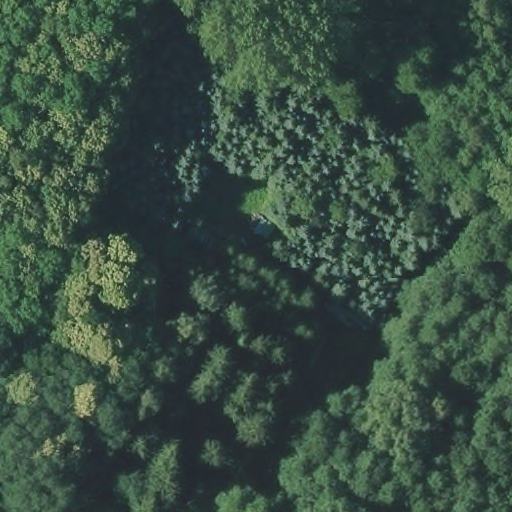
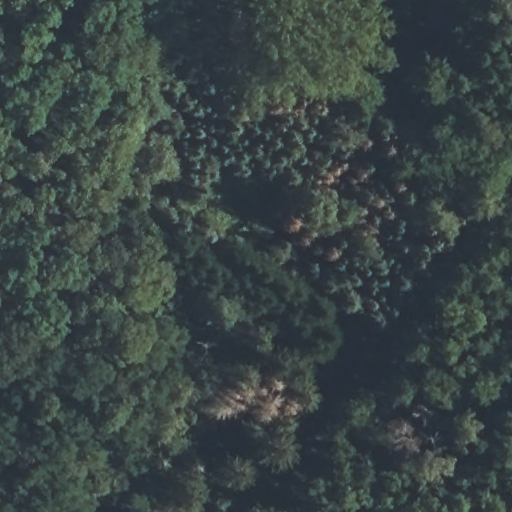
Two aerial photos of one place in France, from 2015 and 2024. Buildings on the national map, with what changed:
unchanged [(242,230),(254,210),(277,222),(266,242),(242,230)]

